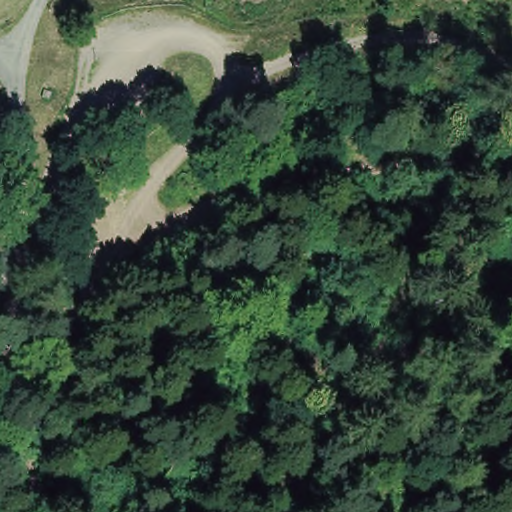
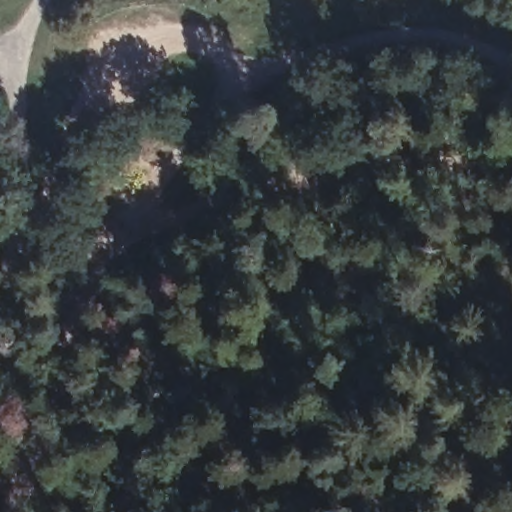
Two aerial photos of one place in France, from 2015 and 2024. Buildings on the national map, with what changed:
unchanged [(53,91),(51,99),(44,96),(45,89),(53,91)]

